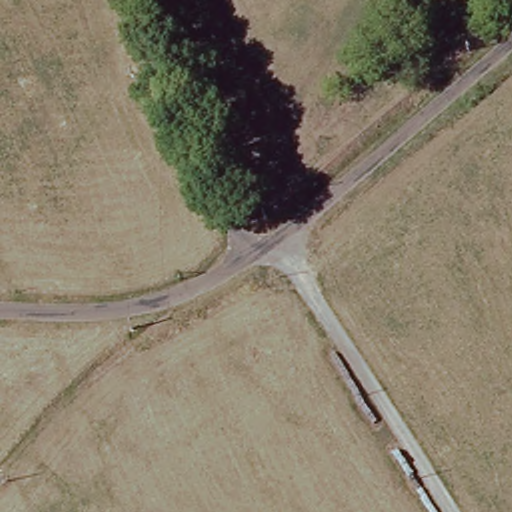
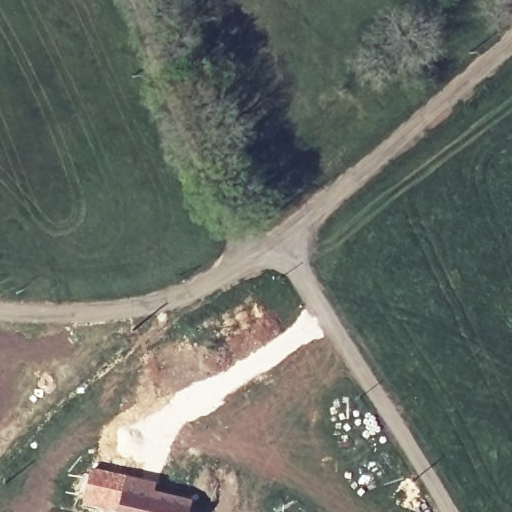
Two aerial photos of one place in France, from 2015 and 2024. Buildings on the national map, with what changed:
new [(127,477),(117,512),(105,512),(80,506),(91,468),(127,477)]
new [(157,484),(155,493),(193,502),(191,512),(117,512),(127,477),(157,484)]

